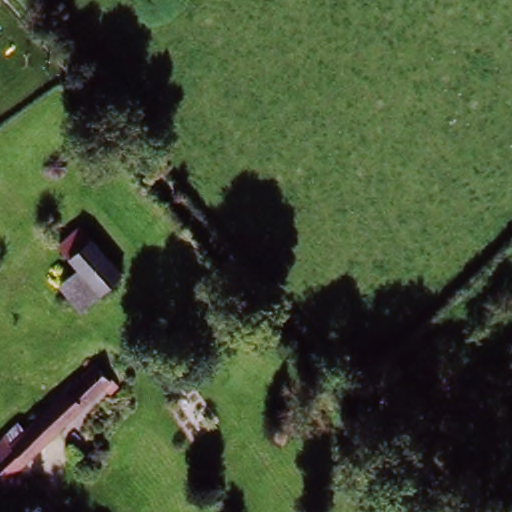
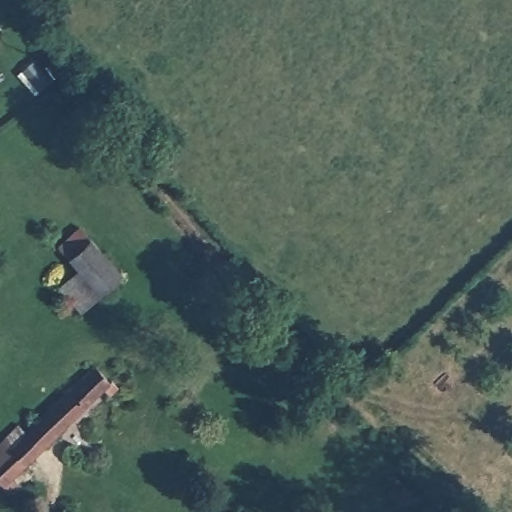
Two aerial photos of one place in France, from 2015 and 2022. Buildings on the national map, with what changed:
unchanged [(64,283),(82,268),(63,245),(85,227),(122,272),(101,291),(82,305),(64,283)]
unchanged [(7,438),(60,390),(58,387),(73,374),(75,378),(95,360),(110,378),(0,476),(0,431),(7,438)]

